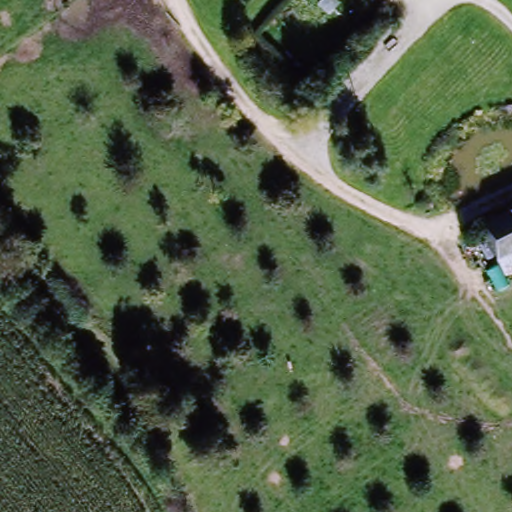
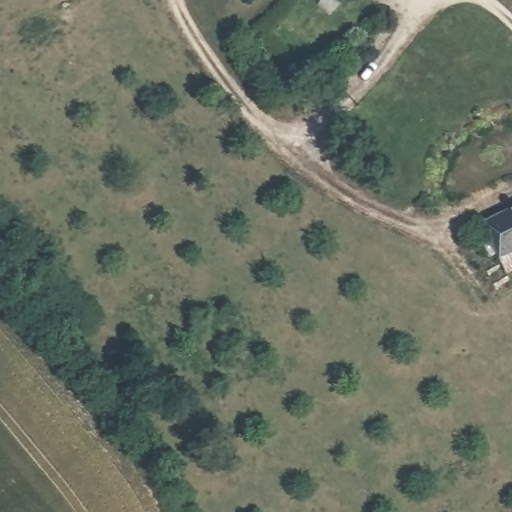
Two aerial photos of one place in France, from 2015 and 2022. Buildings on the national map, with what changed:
unchanged [(512,218),(512,247),(491,257),(482,232),(512,218)]
unchanged [(512,275),(502,280),(491,257),(512,247),(512,275)]

